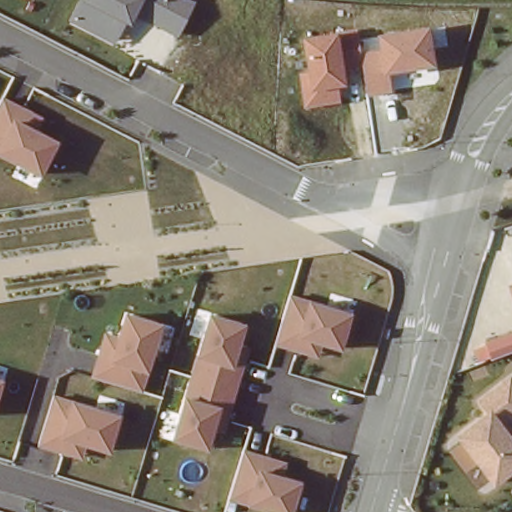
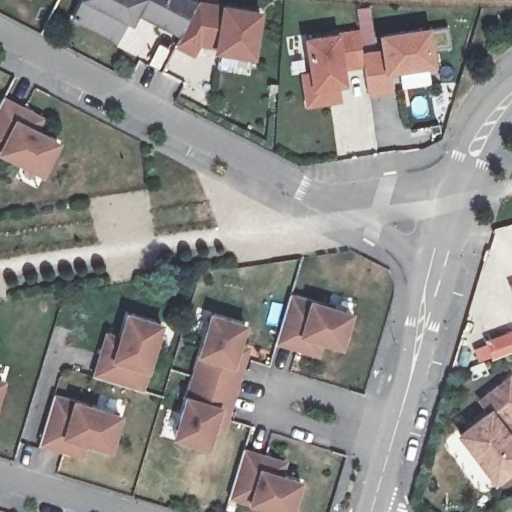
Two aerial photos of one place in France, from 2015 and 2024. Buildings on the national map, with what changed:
unchanged [(195,1),(178,36),(134,17),(132,24),(128,22),(117,44),(70,21),(80,0),(193,0),(195,1)]
new [(195,1),(220,5),(262,12),(255,60),(213,53),(213,48),(200,46),(192,59),(172,47),(178,36),(195,1)]
unchanged [(357,30),(361,53),(379,50),(377,35),(428,26),(435,65),(390,72),(392,92),(369,96),(364,67),(346,70),(348,86),(338,87),(341,104),(304,109),(298,75),(308,72),(302,37),(357,30)]
unchanged [(0,96),(48,116),(41,130),(58,139),(43,177),(0,156),(0,96)]
unchanged [(508,282),(512,280),(512,294),(508,282)]
unchanged [(300,335),(324,342),(318,358),(274,344),(290,294),(310,301),(300,335)]
unchanged [(310,301),(353,315),(342,348),(300,335),(310,301)]
unchanged [(106,331),(117,335),(125,311),(162,322),(142,391),(92,375),(106,331)]
unchanged [(209,311),(247,321),(236,362),(243,363),(232,407),(223,404),(211,450),(173,441),(209,311)]
new [(493,358),(487,342),(512,333),(512,351),(493,358)]
unchanged [(504,422),(512,434),(512,472),(494,484),(455,434),(483,413),(475,399),(509,374),(512,378),(512,417),(504,422)]
unchanged [(4,378),(0,393),(0,377),(4,378)]
unchanged [(53,393),(121,413),(110,452),(88,444),(84,458),(38,443),(53,393)]
unchanged [(276,475),(267,472),(259,469),(250,502),(230,498),(244,448),(285,461),(282,476),(276,475)]
unchanged [(293,512),(279,512),(250,502),(259,469),(302,483),(293,512)]

